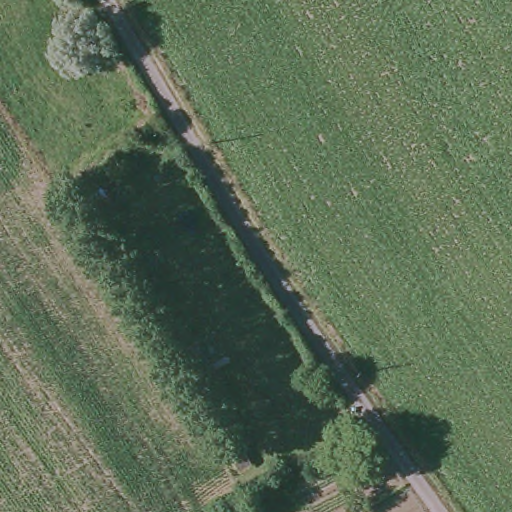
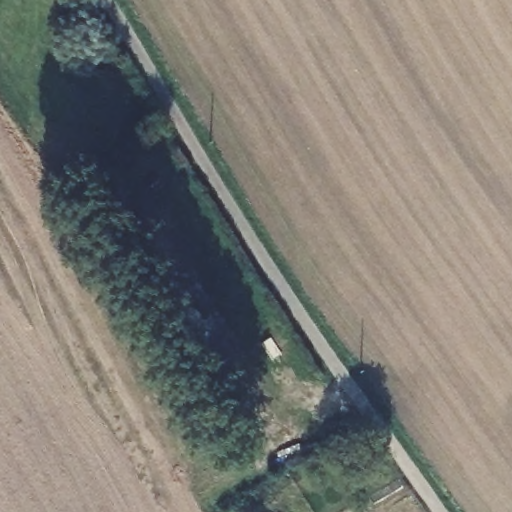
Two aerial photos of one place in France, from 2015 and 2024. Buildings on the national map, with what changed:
unchanged [(245,438),(252,454),(240,461),(230,446),(245,438)]

